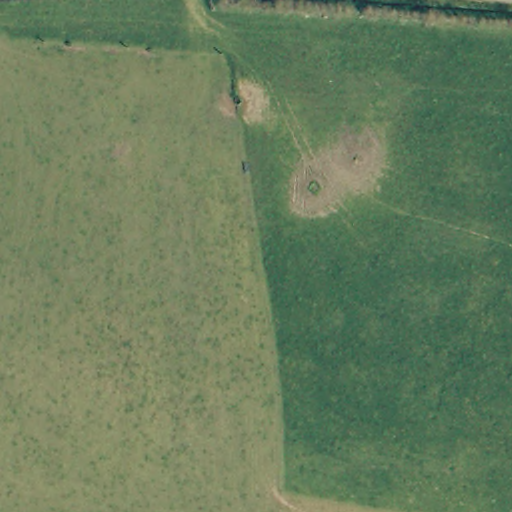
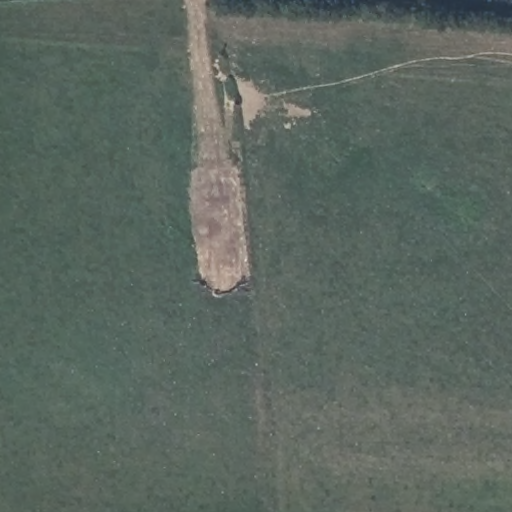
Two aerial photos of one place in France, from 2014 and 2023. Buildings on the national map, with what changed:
[]

